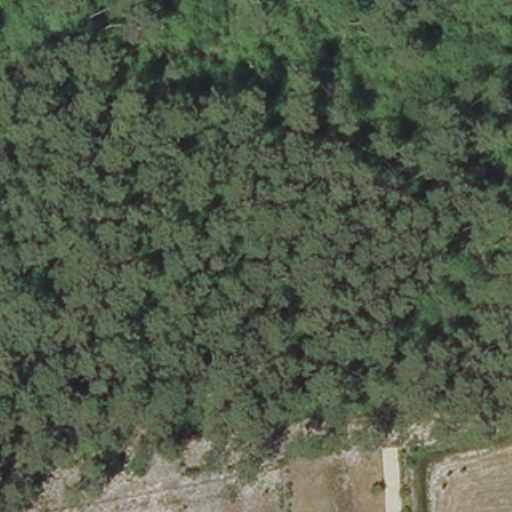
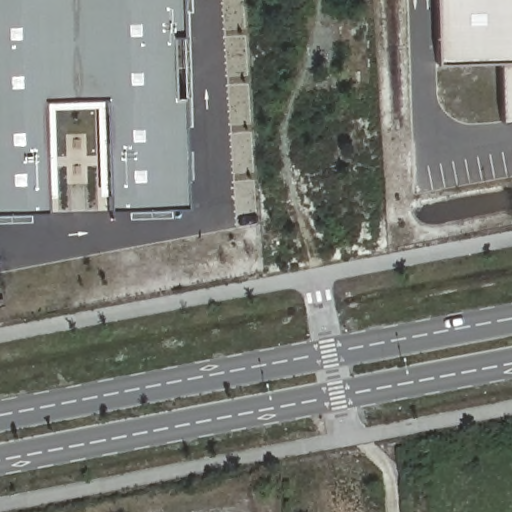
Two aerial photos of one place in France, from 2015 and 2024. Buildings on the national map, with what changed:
new [(182,0),(188,207),(169,208),(169,216),(126,217),(126,210),(108,211),(104,98),(44,100),(45,211),(29,212),(29,220),(0,221),(0,0),(182,0)]
new [(497,54),(434,59),(432,0),(512,0),(512,120),(499,122),(497,54)]

